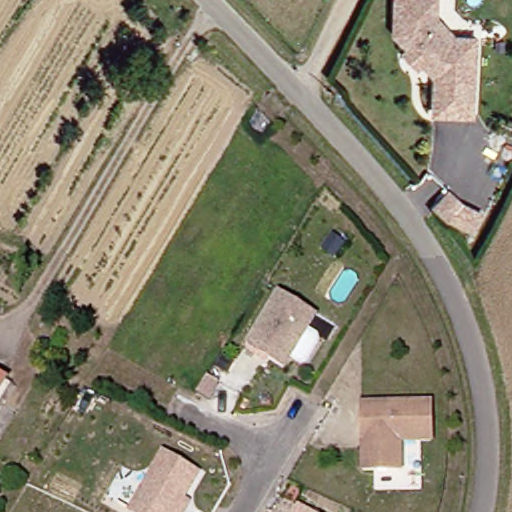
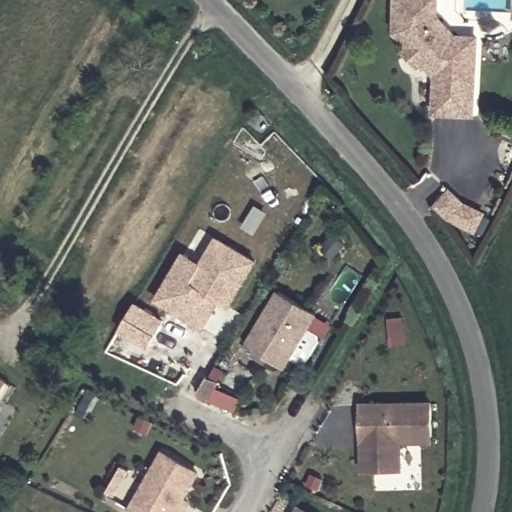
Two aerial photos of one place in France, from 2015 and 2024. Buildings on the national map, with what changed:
unchanged [(436,74),(392,33),(393,10),(393,0),(436,0),(434,19),(471,49),(475,99),(475,109),(469,109),(438,111),(436,74)]
unchanged [(421,207),(412,193),(425,185),(436,201),(424,210),(421,207)]
new [(198,232),(253,265),(227,308),(217,303),(200,331),(154,303),(198,232)]
unchanged [(282,367),(244,345),(278,290),(315,312),(282,367)]
new [(138,302),(166,319),(150,347),(121,330),(138,302)]
unchanged [(429,403),(429,442),(398,442),(398,470),(360,470),(359,436),(359,427),(359,402),(429,403)]
unchanged [(184,512),(131,512),(163,457),(197,476),(182,502),(187,506),(184,512)]
unchanged [(312,512),(298,512),(301,506),(312,512)]

